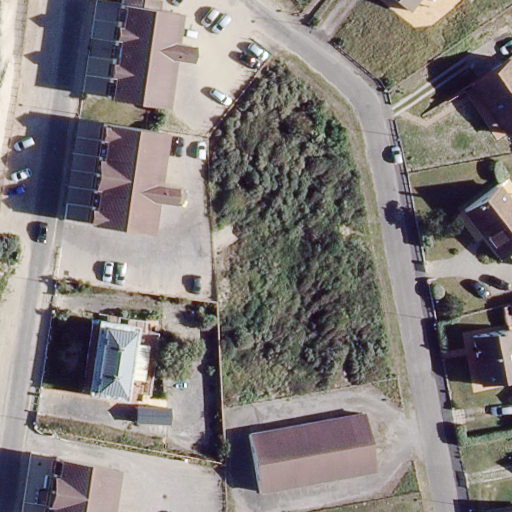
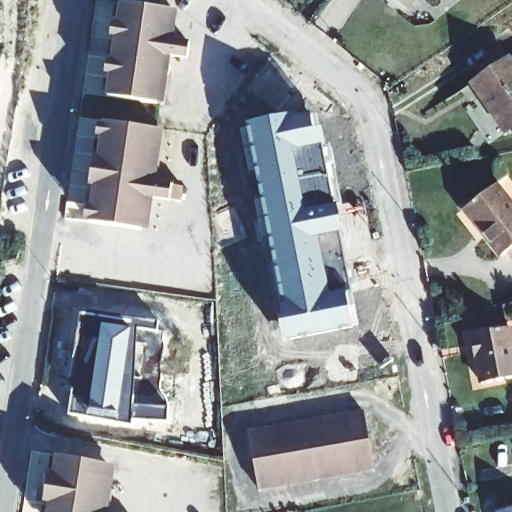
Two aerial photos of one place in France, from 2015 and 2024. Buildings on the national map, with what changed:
unchanged [(160,9),(172,11),(168,41),(191,45),(188,59),(165,56),(158,105),(109,98),(123,0),(161,0),(160,9)]
unchanged [(409,10),(397,0),(416,0),(409,10)]
unchanged [(510,58),(512,62),(512,129),(507,133),(472,84),(510,58)]
new [(315,113),(358,327),(282,342),(255,198),(260,197),(247,124),(315,113)]
unchanged [(135,236),(86,229),(100,128),(151,135),(152,135),(145,188),(150,189),(179,193),(177,208),(147,204),(142,203),(138,236),(135,236)]
unchanged [(496,185),(512,205),(512,259),(507,253),(502,257),(465,209),(496,185)]
unchanged [(136,328),(125,397),(92,392),(102,323),(136,328)]
unchanged [(510,328),(512,341),(512,378),(483,384),(474,335),(510,328)]
unchanged [(170,408),(170,423),(135,421),(137,406),(170,408)]
unchanged [(362,419),(370,474),(255,491),(247,435),(362,419)]
unchanged [(110,465),(103,512),(50,512),(58,457),(110,465)]
unchanged [(500,512),(512,510),(512,512),(500,512)]

